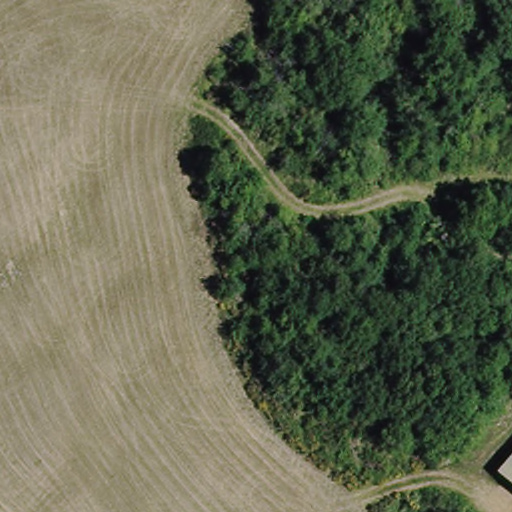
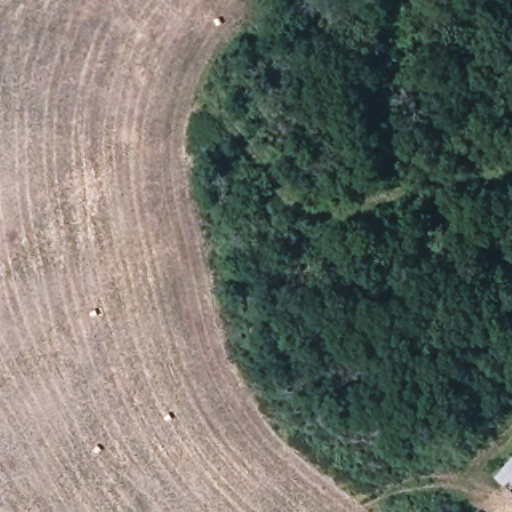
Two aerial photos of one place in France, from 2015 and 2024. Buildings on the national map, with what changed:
unchanged [(512,485),(500,473),(512,459),(512,485)]

